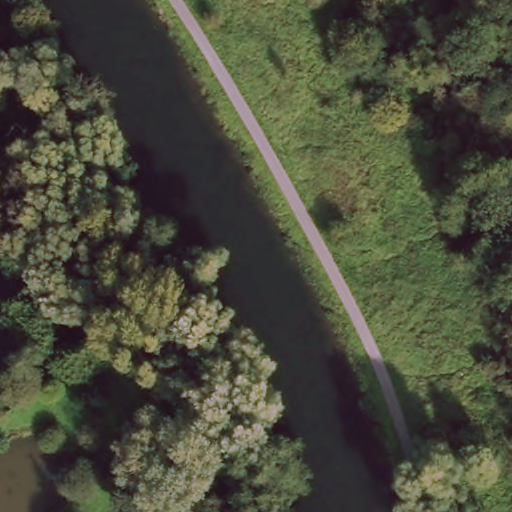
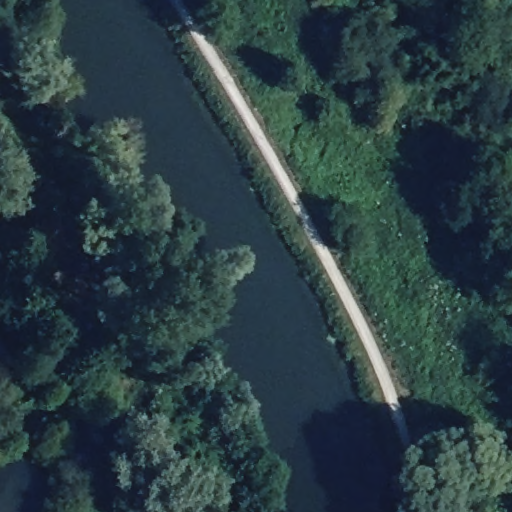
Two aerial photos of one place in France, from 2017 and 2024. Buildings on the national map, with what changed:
unchanged [(83,309),(102,333),(84,344),(66,323),(83,309)]

